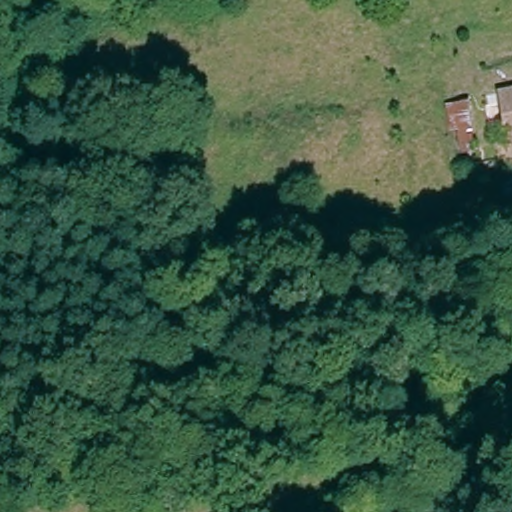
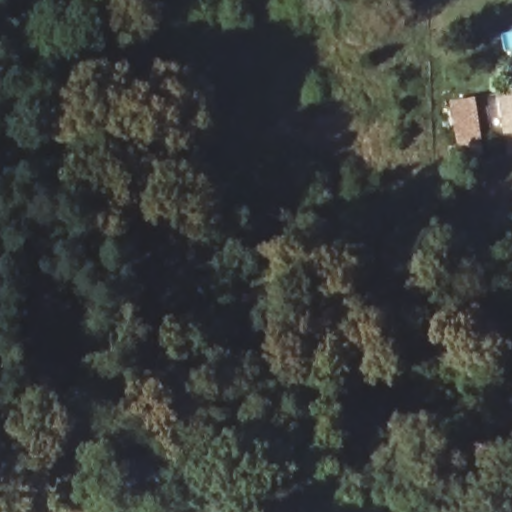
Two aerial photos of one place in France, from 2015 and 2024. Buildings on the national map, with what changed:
unchanged [(497,78),(512,74),(512,122),(506,123),(497,78)]
unchanged [(478,146),(463,150),(450,88),(465,85),(478,146)]
unchanged [(510,140),(506,123),(512,122),(512,140),(510,140)]

